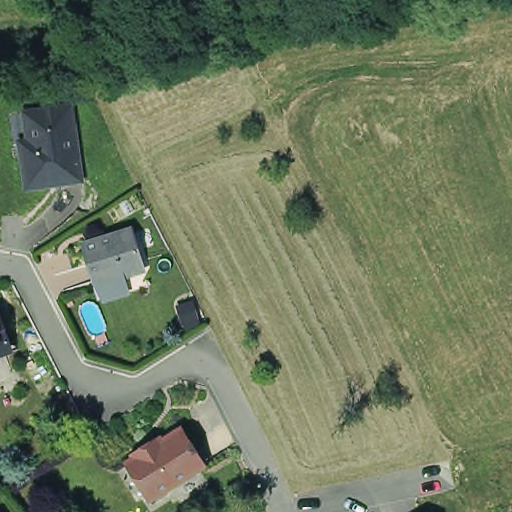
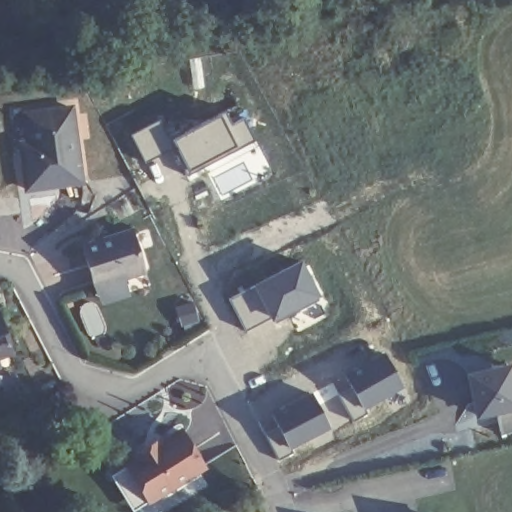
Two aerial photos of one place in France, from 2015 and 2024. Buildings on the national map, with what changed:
unchanged [(70,108),(80,178),(29,186),(24,152),(22,142),(30,141),(26,113),(70,108)]
new [(224,108),(231,120),(240,115),(253,139),(190,176),(172,145),(170,137),(224,108)]
new [(160,116),(170,137),(172,145),(143,161),(127,133),(160,116)]
unchanged [(145,277),(134,281),(124,277),(96,284),(86,252),(133,236),(145,270),(145,277)]
new [(302,255),(322,295),(271,323),(270,320),(250,282),(302,255)]
new [(250,282),(270,320),(245,332),(226,296),(250,282)]
new [(192,297),(200,321),(182,329),(172,305),(192,297)]
new [(500,433),(496,412),(474,417),(465,371),(510,362),(512,374),(512,431),(500,433)]
new [(312,392),(331,427),(288,450),(267,412),(312,392)]
unchanged [(181,436),(202,469),(157,496),(134,459),(157,445),(162,447),(181,436)]

